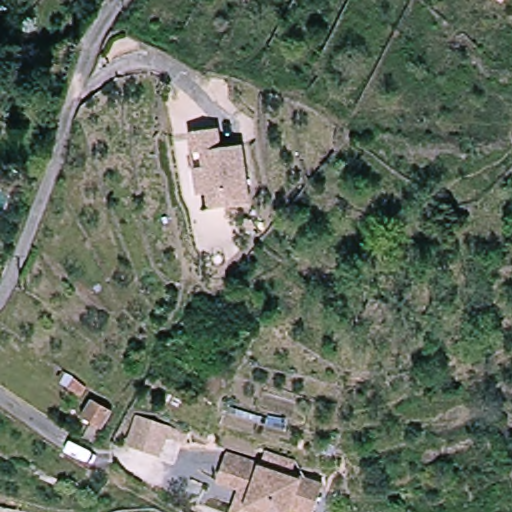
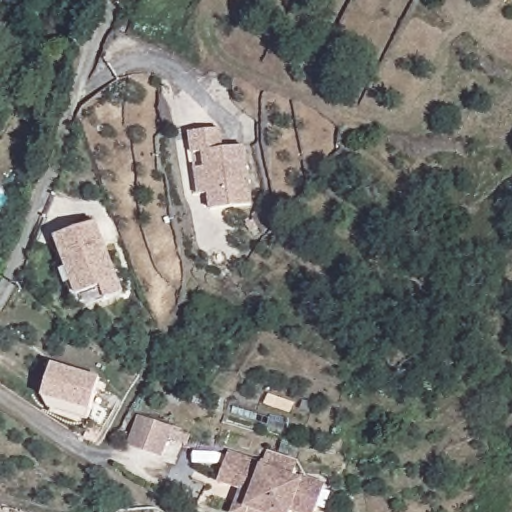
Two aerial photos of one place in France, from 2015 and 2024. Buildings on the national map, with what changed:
unchanged [(510,2),(506,0),(512,0),(510,2)]
unchanged [(196,166),(207,165),(205,149),(195,150),(192,129),(218,127),(220,148),(245,146),(249,205),(210,208),(208,192),(198,193),(196,166)]
new [(54,240),(93,227),(110,276),(117,300),(77,312),(69,307),(58,272),(63,270),(54,240)]
new [(51,363),(99,377),(90,409),(87,417),(52,410),(42,398),(51,363)]
demolished [(93,394),(120,410),(107,428),(82,413),(93,394)]
unchanged [(128,442),(144,412),(173,428),(157,457),(128,442)]
unchanged [(222,488),(234,458),(267,472),(272,461),(300,472),(295,486),(304,489),(305,486),(328,495),(321,512),(240,512),(245,497),(222,488)]

